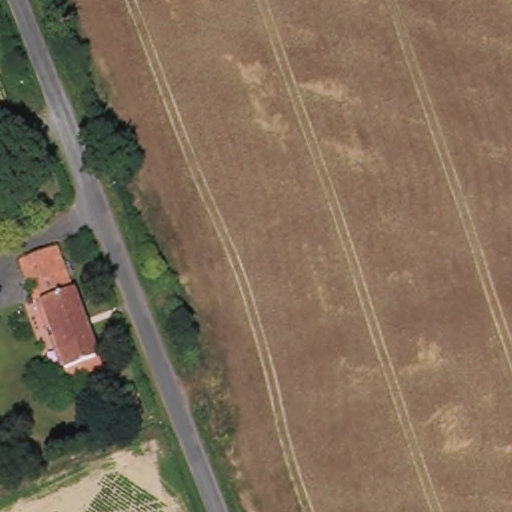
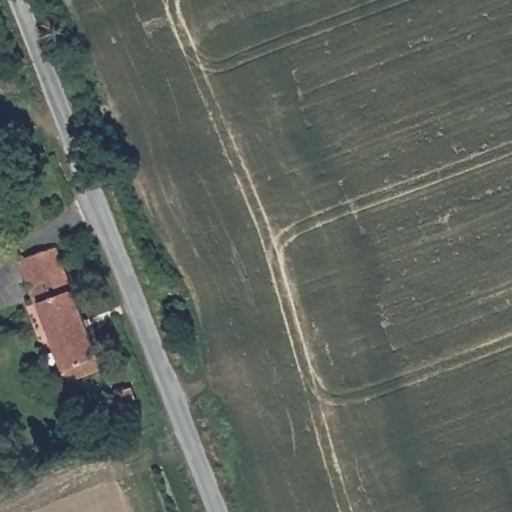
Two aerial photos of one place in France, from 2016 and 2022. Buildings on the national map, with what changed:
unchanged [(70,384),(39,301),(33,303),(18,261),(58,246),(104,371),(70,384)]
unchanged [(144,419),(123,427),(111,394),(132,387),(144,419)]

